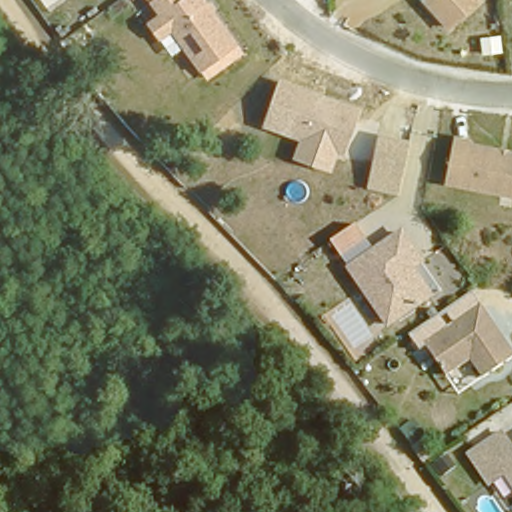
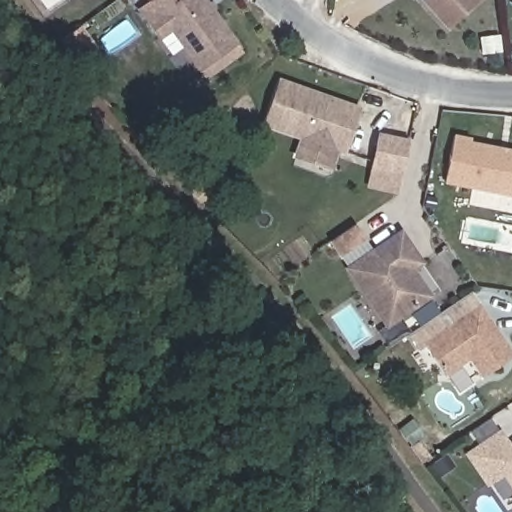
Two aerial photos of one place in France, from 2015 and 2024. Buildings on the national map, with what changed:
unchanged [(171,33),(161,38),(149,21),(158,14),(147,0),(209,0),(210,1),(213,0),(219,7),(216,10),(239,42),(201,71),(171,33)]
unchanged [(446,31),(420,0),(481,0),(483,3),(446,31)]
unchanged [(348,156),(338,152),(333,171),(291,159),(298,138),(261,126),(278,77),(363,106),(348,156)]
unchanged [(400,194),(368,188),(380,132),(411,139),(400,194)]
unchanged [(470,146),(512,156),(512,200),(444,183),(455,138),(471,142),(470,146)]
unchanged [(329,242),(355,224),(375,252),(347,271),(329,242)]
unchanged [(399,235),(413,256),(419,264),(409,271),(428,298),(386,327),(347,271),(375,252),(399,235)]
unchanged [(477,309),(512,358),(481,380),(469,362),(445,378),(423,347),(477,309)]
unchanged [(512,449),(512,482),(507,475),(492,486),(473,458),(503,437),(512,449)]

